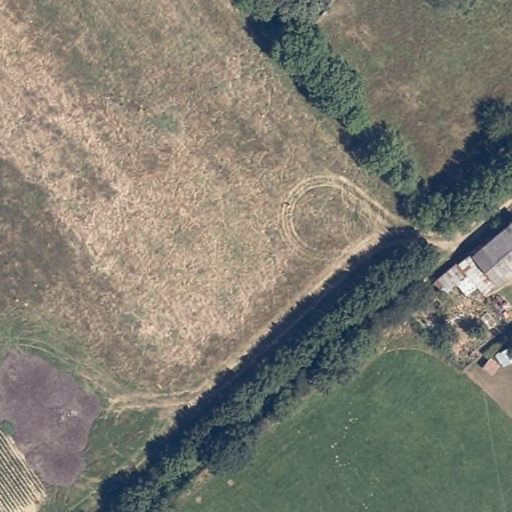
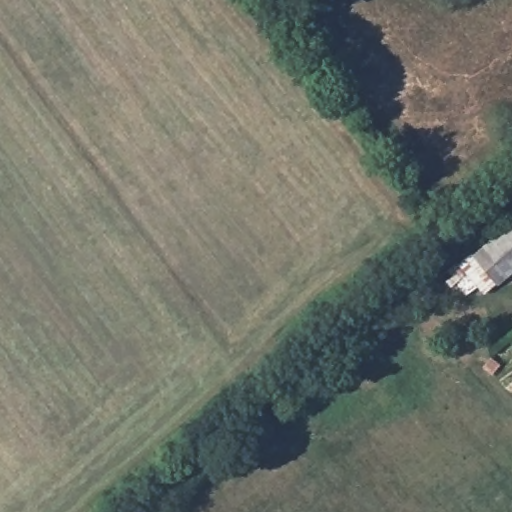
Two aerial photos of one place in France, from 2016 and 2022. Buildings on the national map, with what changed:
unchanged [(475,282),(466,291),(458,279),(466,272),(462,261),(512,220),(512,267),(482,292),(475,282)]

